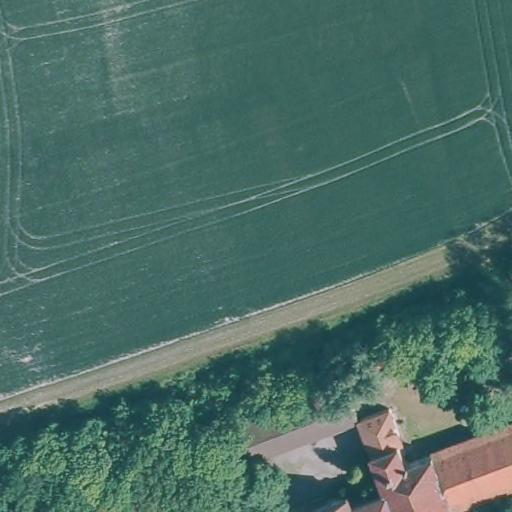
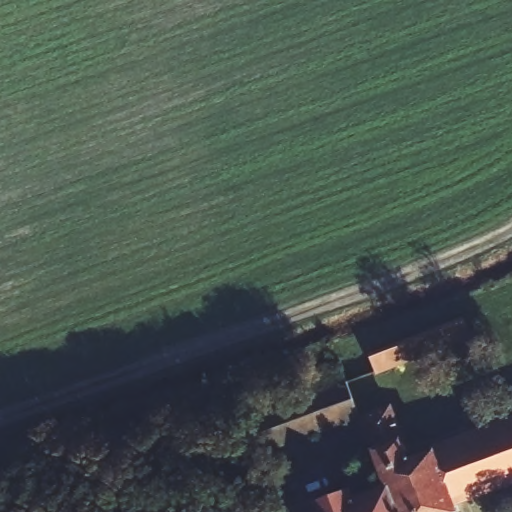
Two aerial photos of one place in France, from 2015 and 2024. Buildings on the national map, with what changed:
unchanged [(399,348),(457,325),(493,310),(499,325),(462,339),(404,361),(399,348)]
unchanged [(365,425),(304,448),(290,415),(351,390),(365,425)]
unchanged [(390,491),(389,490),(365,425),(394,415),(402,437),(397,440),(406,458),(466,436),(473,456),(486,494),(454,506),(456,512),(398,512),(390,491)]
unchanged [(473,456),(466,436),(512,420),(512,484),(486,494),(473,456)]
unchanged [(390,491),(398,512),(336,512),(390,491)]

